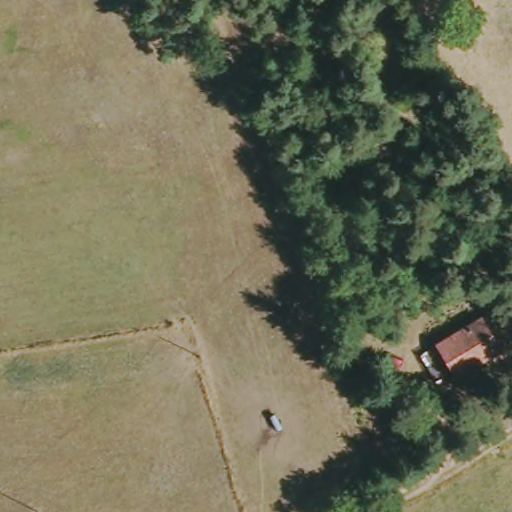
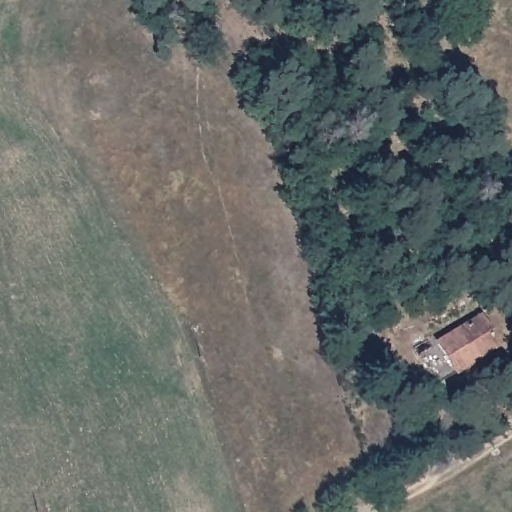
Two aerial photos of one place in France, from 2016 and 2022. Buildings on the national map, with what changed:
unchanged [(479,322),(497,363),(458,381),(442,342),(479,322)]

